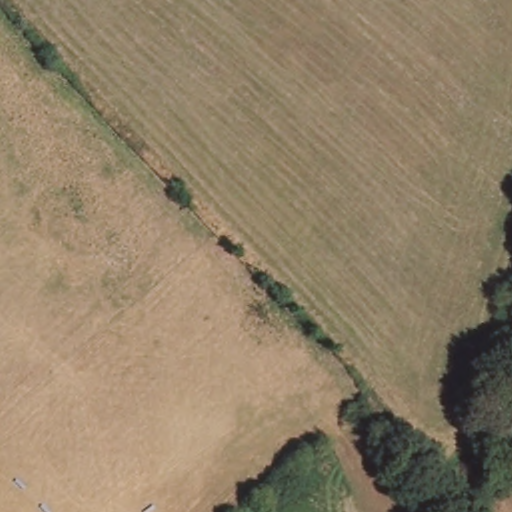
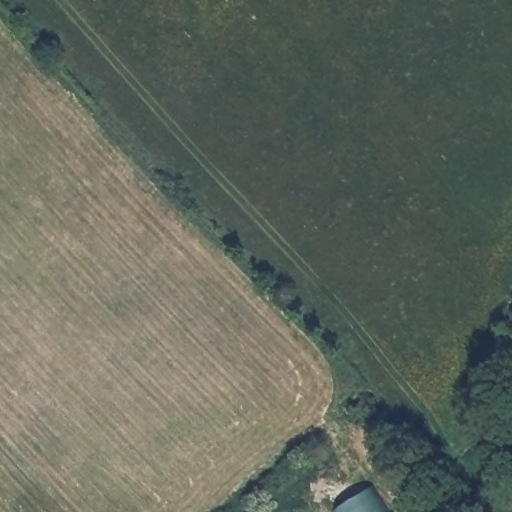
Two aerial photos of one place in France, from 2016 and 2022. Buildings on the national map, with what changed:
new [(372,487),(389,512),(334,512),(372,487)]

